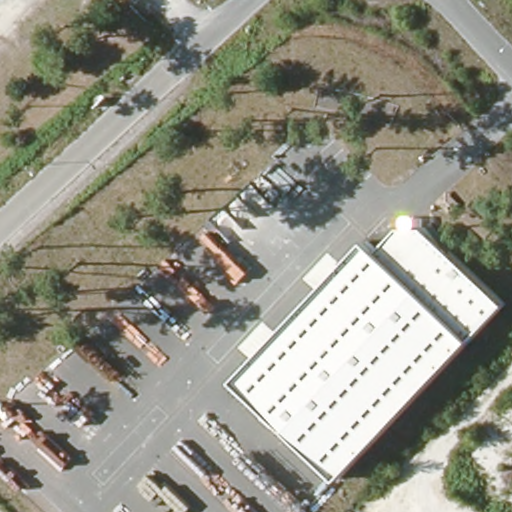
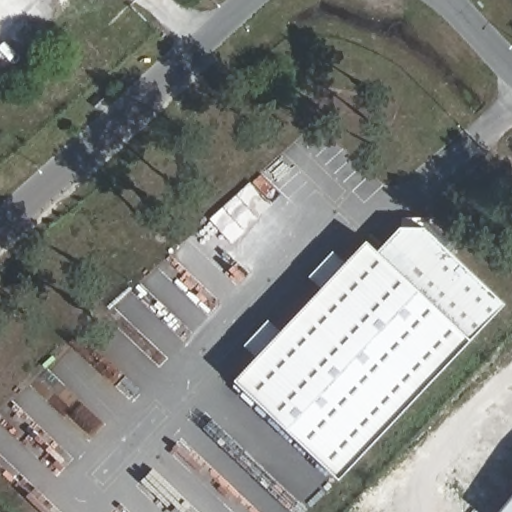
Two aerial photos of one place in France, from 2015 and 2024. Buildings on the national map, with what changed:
unchanged [(337,478),(233,380),(365,240),(376,250),(398,227),(423,226),(503,303),(337,478)]
new [(512,497),(512,512),(500,512),(512,497)]

